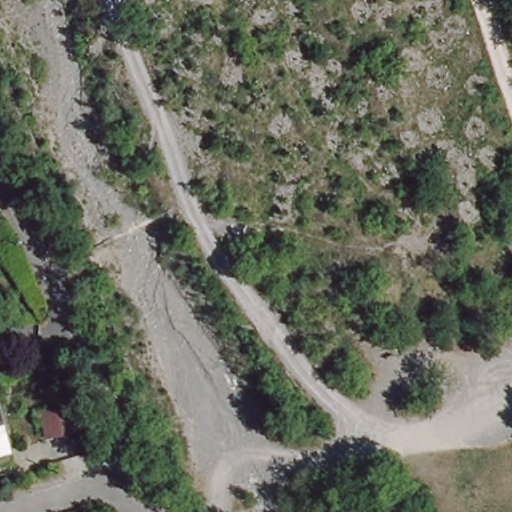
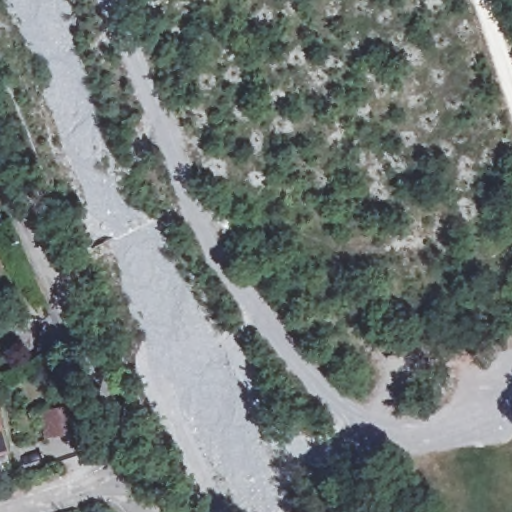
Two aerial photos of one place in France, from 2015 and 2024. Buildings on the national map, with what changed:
unchanged [(66,406),(70,429),(42,434),(38,411),(66,406)]
unchanged [(12,455),(0,458),(0,411),(12,455)]

